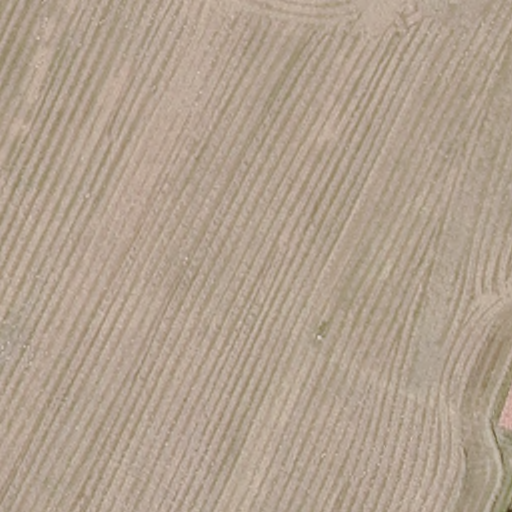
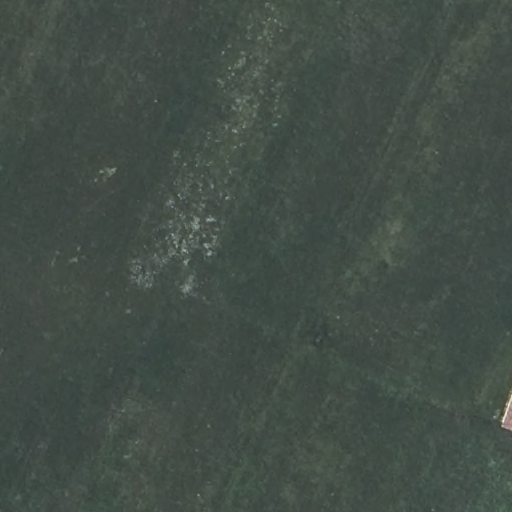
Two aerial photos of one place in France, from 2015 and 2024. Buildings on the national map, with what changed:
unchanged [(512,412),(512,430),(506,428),(512,412)]

